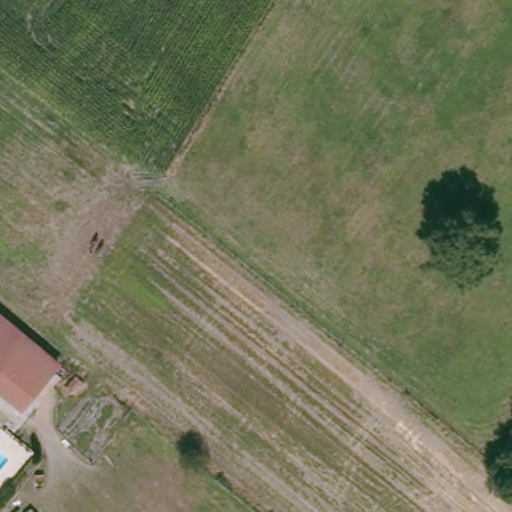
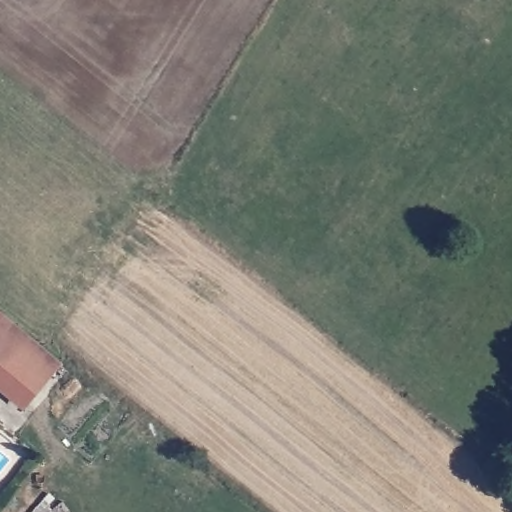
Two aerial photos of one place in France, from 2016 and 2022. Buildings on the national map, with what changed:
unchanged [(55,357),(19,404),(0,389),(0,313),(55,357)]

